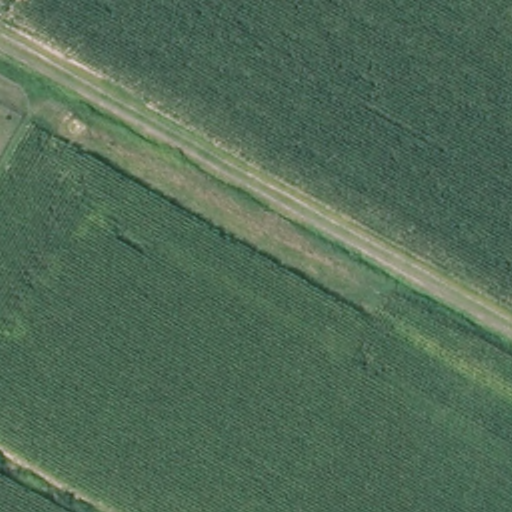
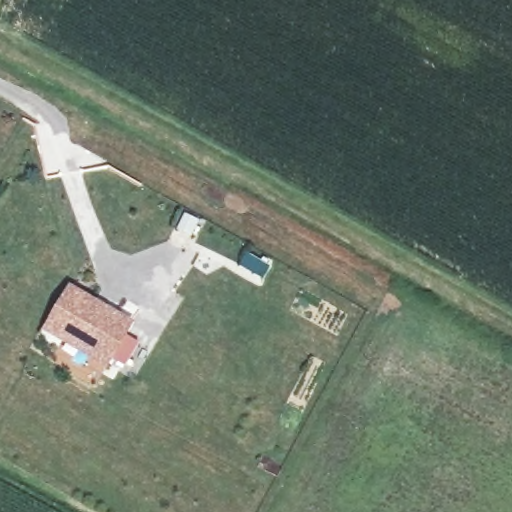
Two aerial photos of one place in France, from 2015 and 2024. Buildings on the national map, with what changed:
new [(135,321),(108,367),(41,330),(69,284),(135,321)]

